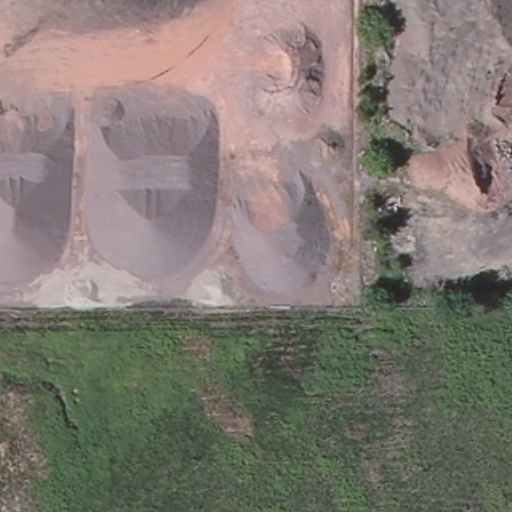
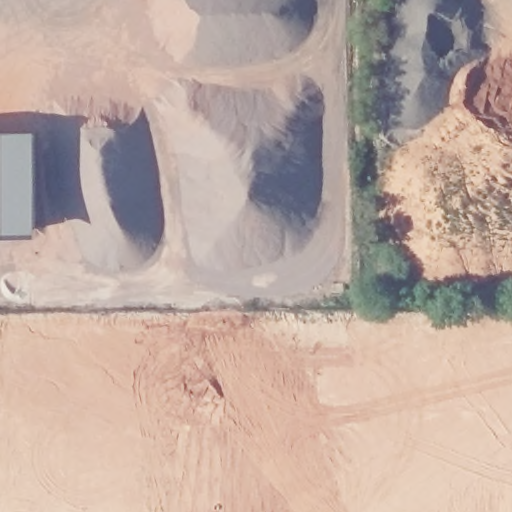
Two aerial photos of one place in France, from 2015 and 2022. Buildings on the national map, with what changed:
new [(36,130),(35,235),(0,235),(0,131),(36,130)]

